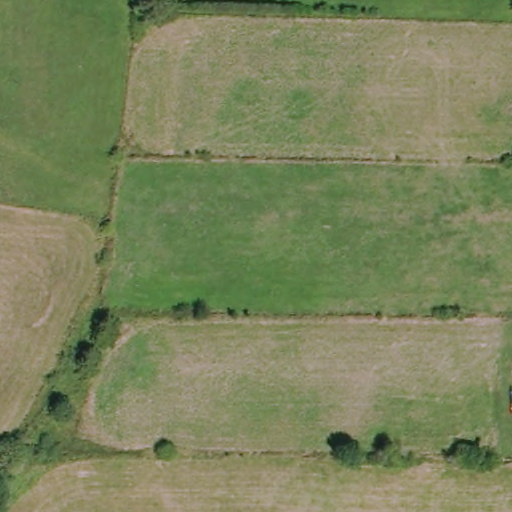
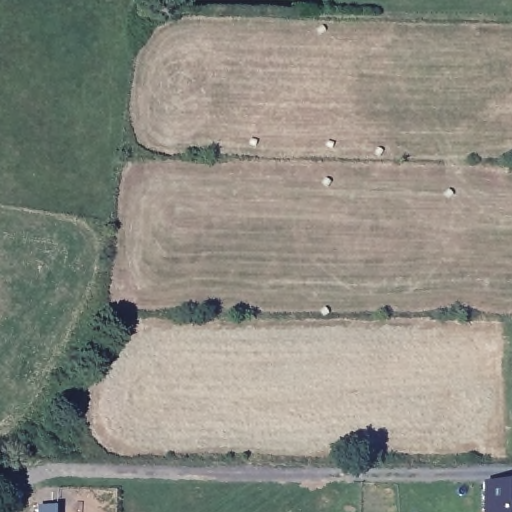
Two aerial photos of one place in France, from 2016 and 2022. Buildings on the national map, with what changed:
new [(483,512),(483,485),(512,484),(512,512),(483,512)]
new [(57,512),(39,512),(39,506),(57,507),(57,512)]

